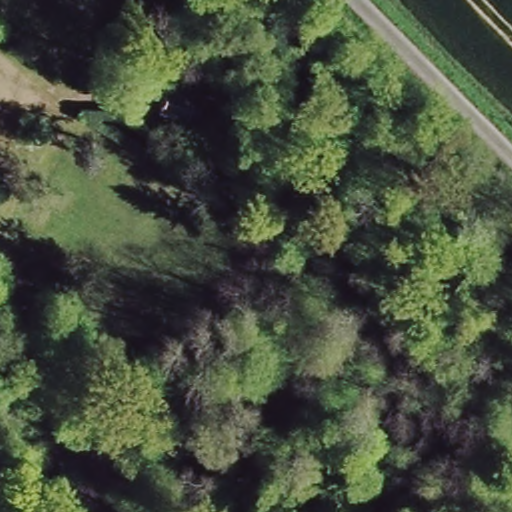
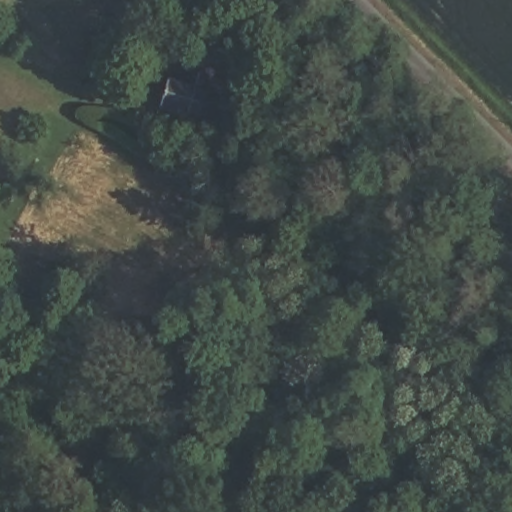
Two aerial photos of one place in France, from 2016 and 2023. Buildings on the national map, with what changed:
unchanged [(187,78),(190,71),(209,79),(206,86),(227,95),(214,121),(192,111),(187,123),(153,108),(170,71),(187,78)]
unchanged [(157,353),(146,379),(122,369),(132,343),(157,353)]

